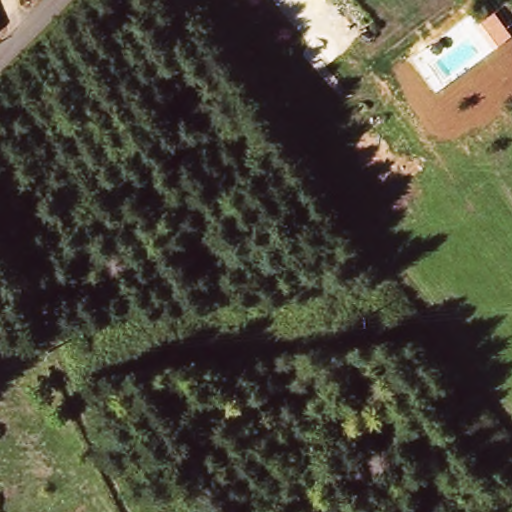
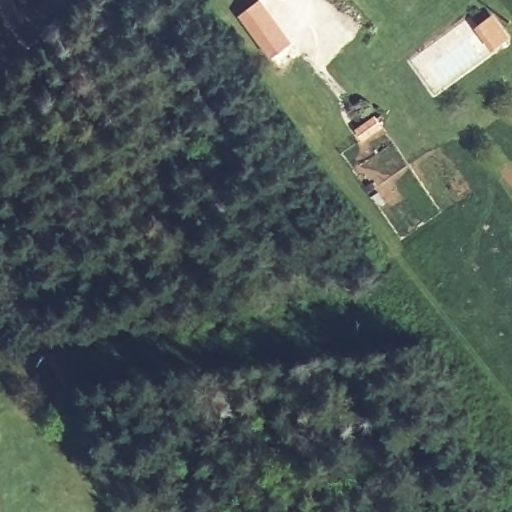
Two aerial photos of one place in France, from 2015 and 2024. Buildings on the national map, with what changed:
new [(273,56),(239,15),(259,0),(262,0),(294,41),(273,56)]
unchanged [(495,12),(512,37),(494,50),(476,26),(495,12)]

